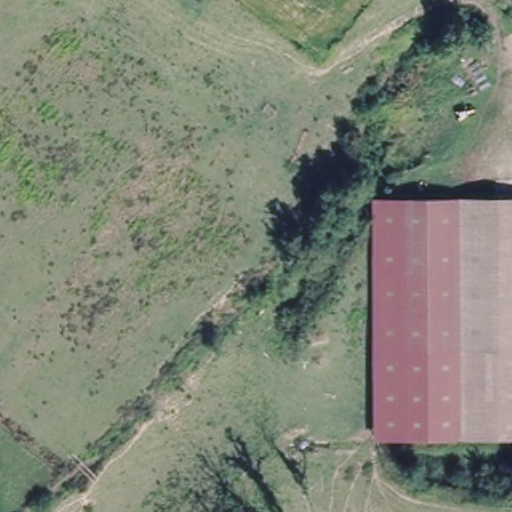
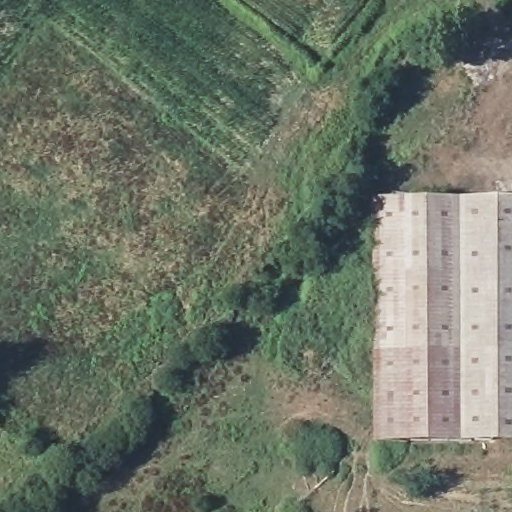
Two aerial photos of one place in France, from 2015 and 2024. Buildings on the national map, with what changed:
unchanged [(373,442),(375,198),(512,197),(512,442),(373,442)]

